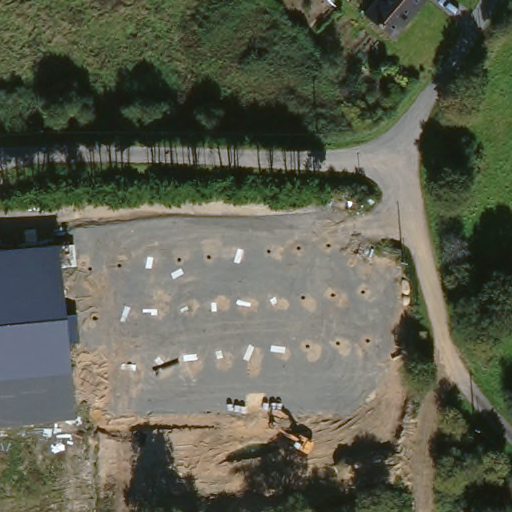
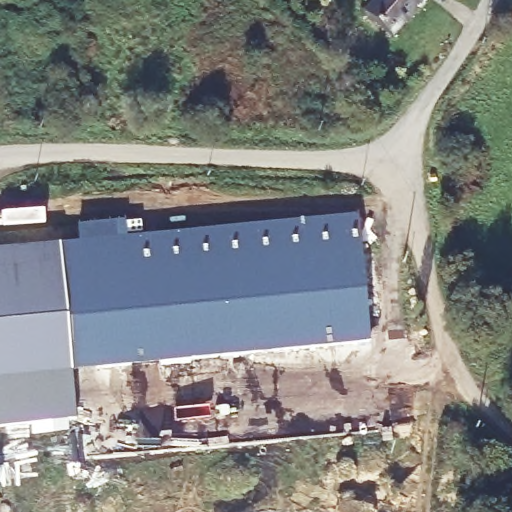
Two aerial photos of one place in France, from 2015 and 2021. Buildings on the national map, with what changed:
unchanged [(372,0),(417,0),(421,5),(386,40),(359,12),(372,0)]
new [(78,239),(77,226),(124,221),(126,237),(358,215),(369,342),(71,372),(76,419),(0,427),(0,246),(55,240),(78,239)]
demolished [(0,379),(0,246),(55,240),(62,299),(71,372),(65,372),(0,379)]

